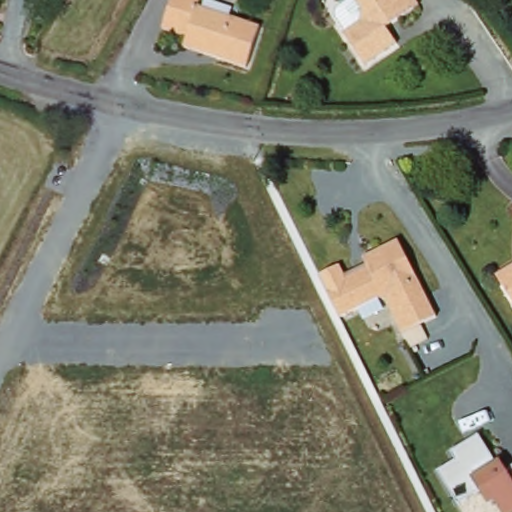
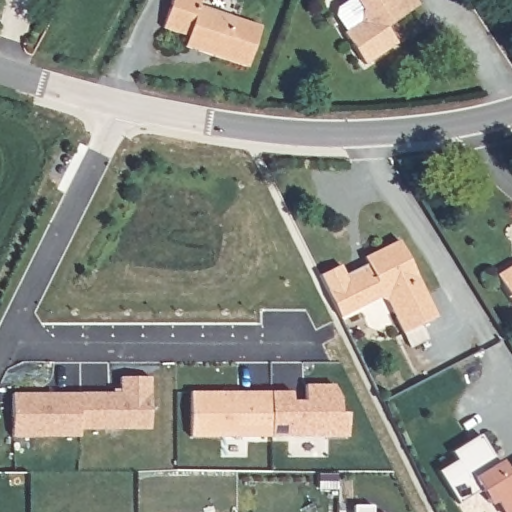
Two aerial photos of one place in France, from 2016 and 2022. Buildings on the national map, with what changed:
unchanged [(201,6),(249,21),(235,67),(173,49),(179,31),(161,26),(168,0),(203,0),(201,6)]
unchanged [(356,0),(412,0),(416,7),(383,27),(393,44),(362,64),(341,31),(357,21),(359,3),(356,0)]
unchanged [(365,264),(361,255),(397,236),(436,313),(399,332),(384,303),(373,302),(355,311),(358,317),(340,326),(326,298),(360,280),(354,270),(365,264)]
unchanged [(512,264),(512,303),(495,275),(512,264)]
new [(120,378),(152,377),(150,429),(79,429),(79,437),(13,437),(13,393),(120,393),(120,378)]
new [(293,392),(294,401),(308,400),(307,384),(333,385),(339,395),(341,413),(347,413),(347,436),(191,437),(191,391),(293,392)]
unchanged [(489,506),(480,491),(458,505),(439,472),(458,462),(452,452),(481,436),(496,464),(501,461),(506,470),(512,466),(512,512),(500,512),(495,502),(489,506)]

